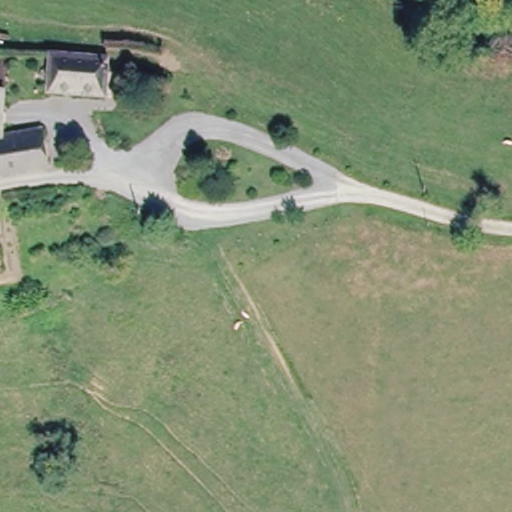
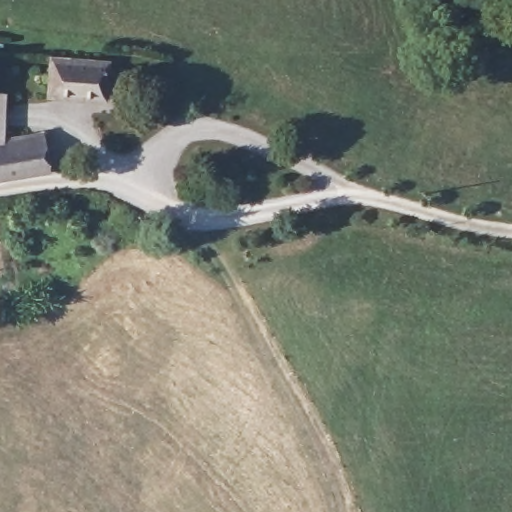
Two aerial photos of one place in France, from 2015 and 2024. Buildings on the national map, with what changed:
unchanged [(47,97),(52,59),(108,65),(105,104),(47,97)]
unchanged [(10,138),(47,131),(51,165),(52,174),(0,183),(0,93),(12,93),(10,138)]

